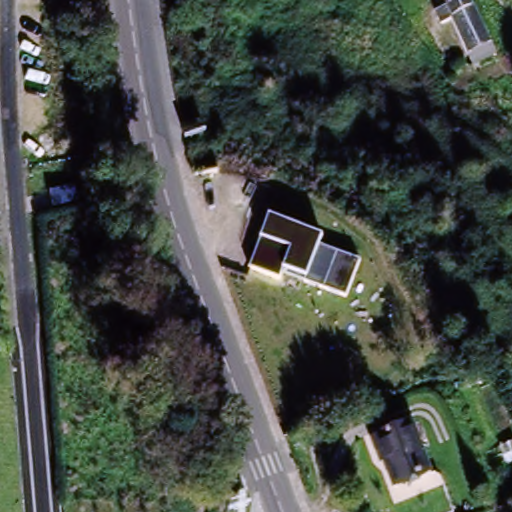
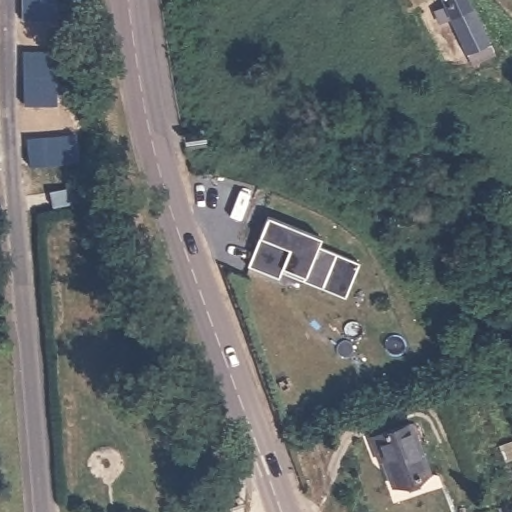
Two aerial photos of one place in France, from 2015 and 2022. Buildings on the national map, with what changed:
new [(24,19),(23,0),(56,0),(56,19),(24,19)]
unchanged [(471,60),(445,0),(471,0),(493,50),(471,60)]
new [(25,54),(55,53),(56,104),(26,106),(25,54)]
new [(77,137),(79,161),(31,166),(30,141),(77,137)]
unchanged [(81,186),(84,200),(60,205),(57,191),(81,186)]
unchanged [(323,236),(320,244),(359,259),(346,295),(283,265),(278,277),(251,266),(270,215),(323,236)]
unchanged [(409,425),(430,476),(391,493),(373,438),(409,425)]

